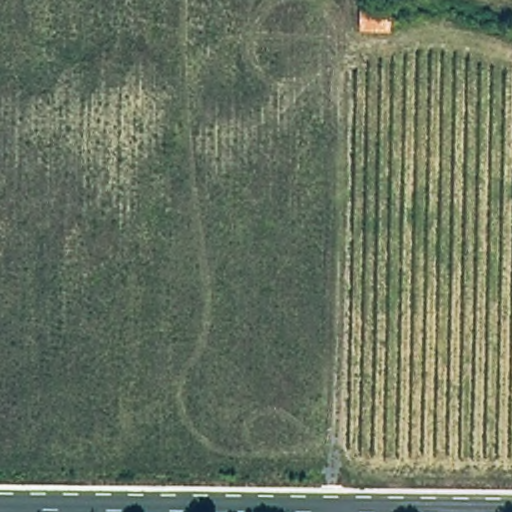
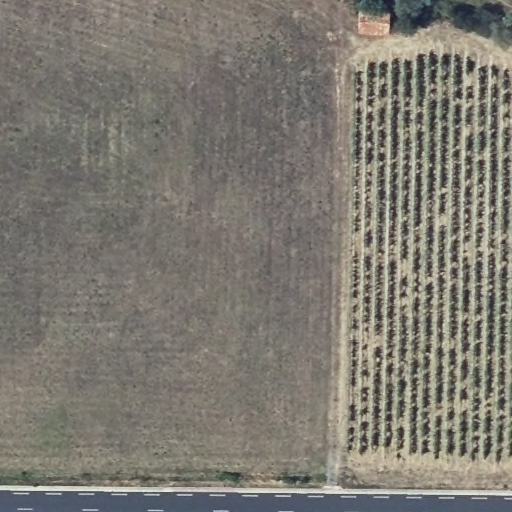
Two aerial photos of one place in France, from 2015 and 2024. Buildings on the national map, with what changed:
unchanged [(359,3),(392,4),(392,31),(358,32),(359,3)]

